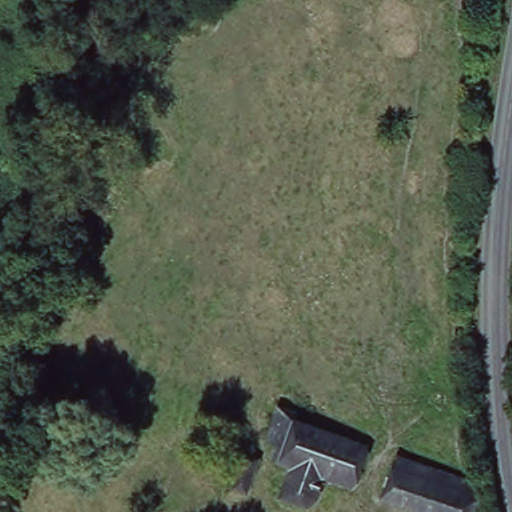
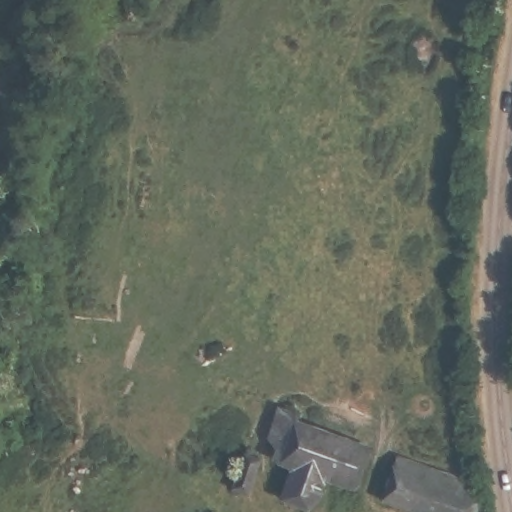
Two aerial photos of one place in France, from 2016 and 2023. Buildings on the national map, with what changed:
unchanged [(303,413),(302,423),(366,446),(352,485),(327,477),(321,498),(312,507),(286,497),(297,465),(283,460),(285,455),(280,454),(286,433),(276,432),(283,408),(303,413)]
unchanged [(250,452),(263,457),(252,492),(236,487),(250,452)]
unchanged [(424,512),(386,500),(402,455),(464,476),(478,480),(466,512),(424,512)]

